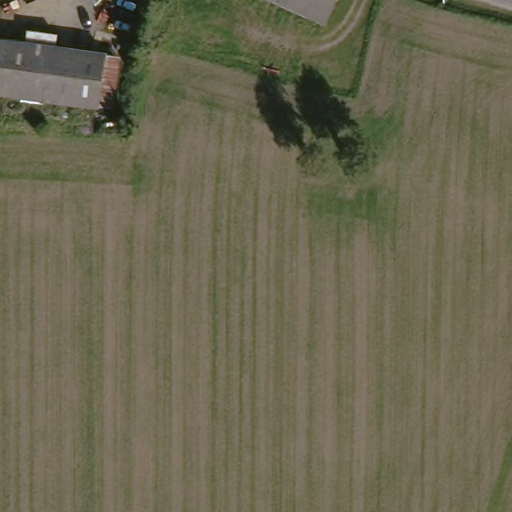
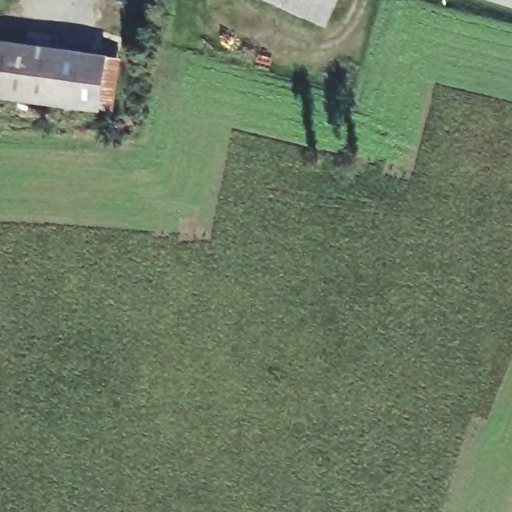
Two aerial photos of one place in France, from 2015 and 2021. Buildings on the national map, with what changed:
unchanged [(329,26),(266,0),(340,0),(329,26)]
unchanged [(105,107),(57,103),(0,98),(0,42),(110,51),(124,52),(119,109),(105,107)]

